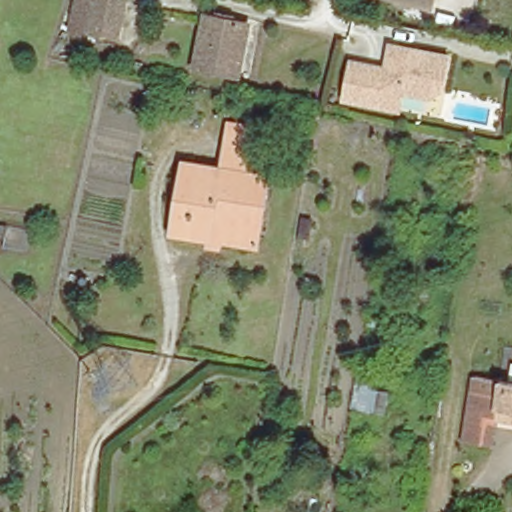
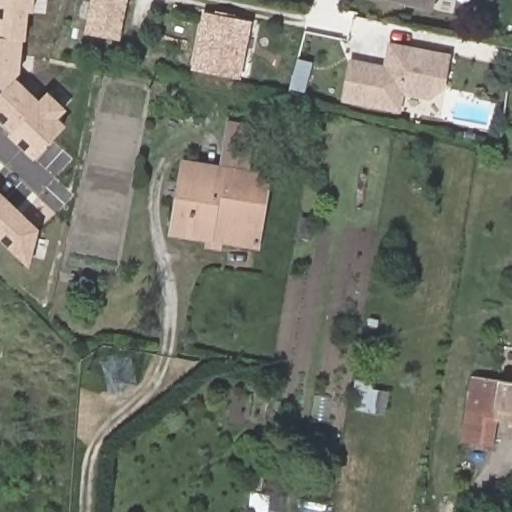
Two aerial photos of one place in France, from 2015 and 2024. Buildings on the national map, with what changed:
new [(27,12),(25,42),(22,41),(20,75),(15,79),(40,102),(47,92),(66,110),(58,120),(65,127),(34,161),(7,136),(9,132),(0,123),(0,94),(3,90),(0,86),(0,0),(34,0),(33,12),(27,12)]
unchanged [(124,0),(116,37),(70,28),(76,0),(124,0)]
unchanged [(406,6),(376,0),(430,0),(428,10),(406,6)]
unchanged [(205,16),(249,24),(239,76),(195,67),(205,16)]
unchanged [(389,70),(390,64),(385,63),(388,46),(446,56),(439,100),(400,92),(397,110),(342,100),(349,62),(384,69),(389,70)]
unchanged [(225,144),(221,144),(224,127),(249,131),(246,147),(241,147),(237,172),(263,177),(251,246),(167,232),(179,162),(221,170),(225,144)]
new [(28,268),(0,241),(0,193),(38,230),(28,268)]
unchanged [(303,216),(311,217),(308,239),(300,238),(303,216)]
demolished [(4,238),(0,237),(0,224),(7,226),(4,238)]
unchanged [(496,418),(491,444),(463,440),(473,378),(512,385),(512,421),(496,418)]
unchanged [(369,387),(388,391),(384,414),(350,408),(354,379),(370,382),(369,387)]

